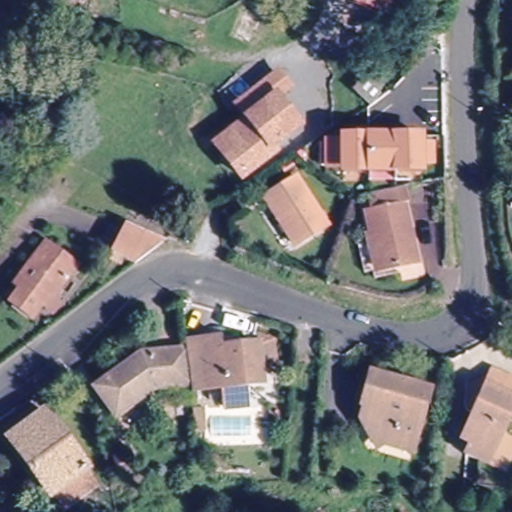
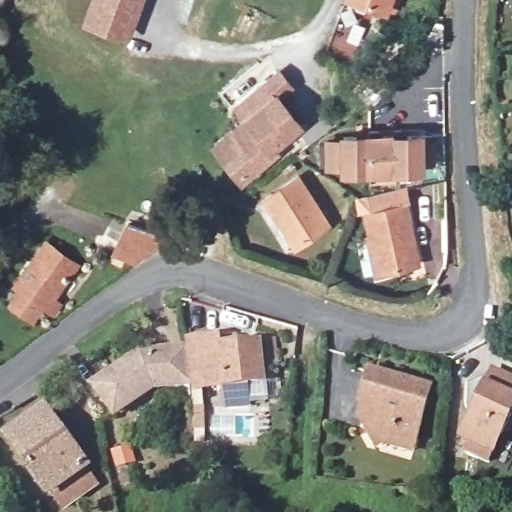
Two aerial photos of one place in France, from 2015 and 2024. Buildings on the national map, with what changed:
new [(130,38),(81,21),(89,0),(144,0),(130,38)]
unchanged [(380,14),(348,0),(387,0),(380,14)]
unchanged [(280,72),(291,86),(279,96),(302,124),(276,146),(279,150),(247,177),(228,154),(260,127),(241,106),(280,72)]
unchanged [(342,169),(341,164),(326,165),(324,142),(340,141),(339,136),(417,130),(420,162),(342,169)]
unchanged [(291,181),(322,227),(291,248),(260,203),(291,181)]
unchanged [(409,196),(404,197),(421,258),(384,268),(367,207),(371,206),(367,191),(405,182),(409,196)]
unchanged [(131,260),(127,258),(122,257),(111,252),(124,226),(160,239),(131,260)]
unchanged [(16,290),(21,282),(45,250),(73,271),(49,303),(43,310),(16,290)]
unchanged [(198,341),(220,340),(220,348),(257,346),(260,386),(202,391),(198,341)]
unchanged [(147,389),(112,415),(91,387),(133,356),(143,356),(143,353),(183,349),(186,386),(147,389)]
unchanged [(376,443),(360,420),(363,409),(359,408),(364,387),(367,375),(372,377),(426,391),(413,443),(410,452),(376,443)]
unchanged [(459,444),(489,378),(512,388),(512,392),(508,402),(512,403),(512,414),(492,458),(469,448),(459,444)]
unchanged [(47,492),(40,483),(8,437),(44,411),(83,466),(58,484),(47,492)]

